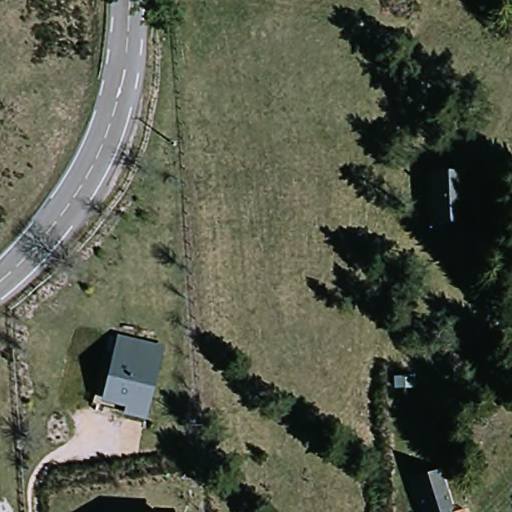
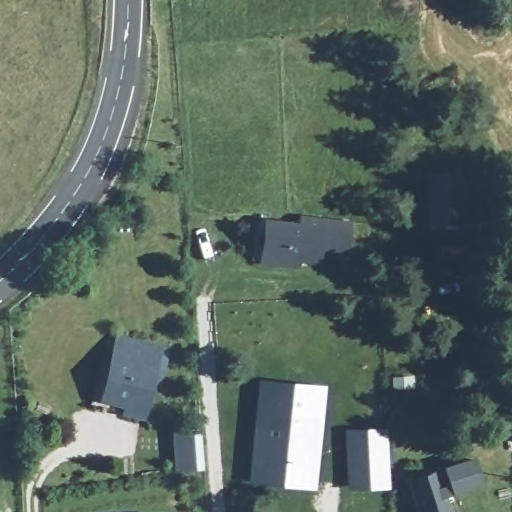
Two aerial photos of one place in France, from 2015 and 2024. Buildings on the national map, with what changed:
unchanged [(467,174),(466,227),(431,227),(433,175),(467,174)]
new [(348,254),(324,253),(322,263),(299,260),(298,269),(257,265),(262,218),(295,221),(295,218),(350,223),(348,254)]
unchanged [(164,346),(147,420),(124,416),(124,408),(101,404),(118,335),(164,346)]
new [(318,393),(309,481),(256,475),(265,387),(318,393)]
new [(344,430),(387,428),(390,488),(348,490),(344,430)]
unchanged [(446,473),(456,512),(426,512),(415,481),(446,473)]

